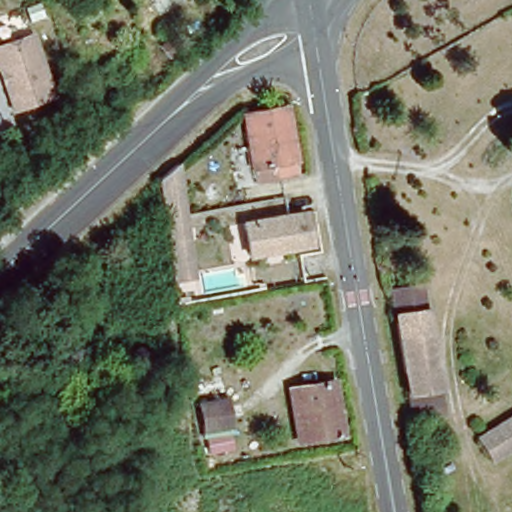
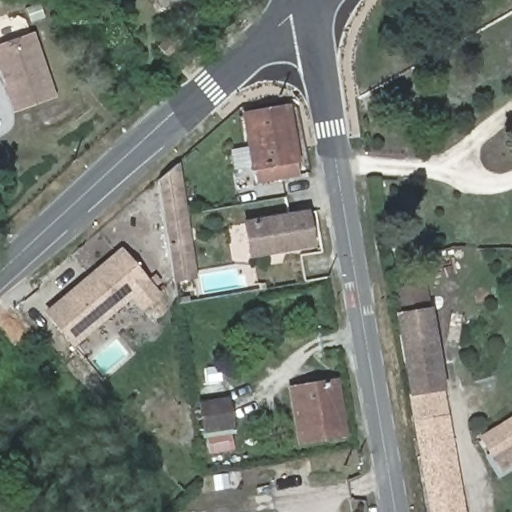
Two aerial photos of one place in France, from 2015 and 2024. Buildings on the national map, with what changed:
unchanged [(51,97),(12,111),(2,82),(5,79),(2,73),(0,72),(0,44),(20,37),(30,33),(30,35),(51,97)]
unchanged [(247,110),(287,107),(296,172),(252,179),(247,110)]
unchanged [(180,163),(186,211),(211,207),(215,227),(190,231),(196,275),(176,278),(162,179),(180,163)]
unchanged [(2,183),(10,175),(19,184),(10,192),(2,183)]
unchanged [(247,227),(307,218),(313,245),(252,255),(247,227)]
new [(140,312),(130,300),(71,348),(41,312),(120,247),(161,295),(140,312)]
unchanged [(415,418),(398,316),(395,290),(427,285),(430,312),(447,413),(415,418)]
unchanged [(295,389),(335,382),(343,437),(303,443),(295,389)]
unchanged [(230,402),(232,422),(198,428),(195,407),(197,406),(230,402)]
new [(415,418),(447,413),(464,512),(427,512),(410,420),(415,418)]
unchanged [(485,435),(512,418),(512,450),(500,457),(485,435)]

